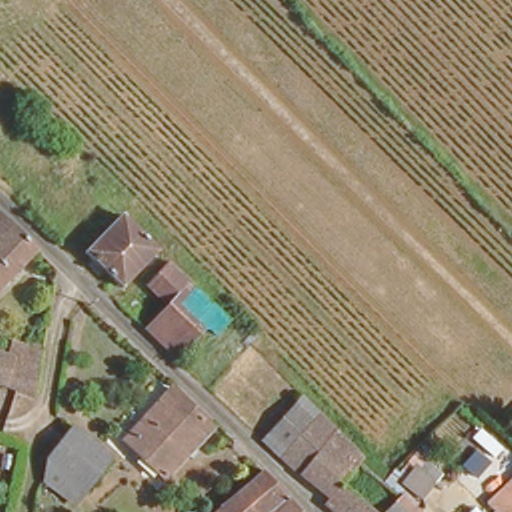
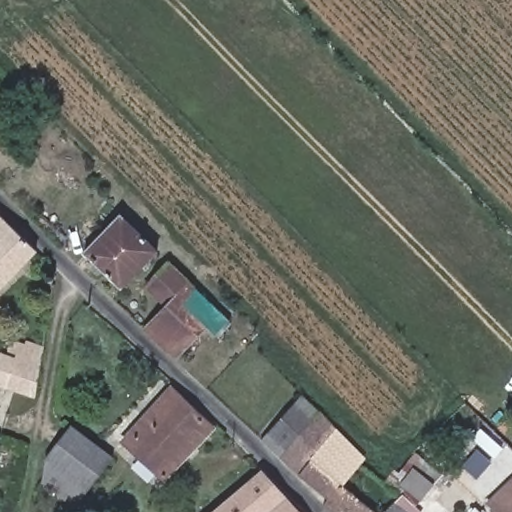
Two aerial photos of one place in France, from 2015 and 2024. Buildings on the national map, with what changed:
unchanged [(35,250),(0,285),(0,215),(35,250)]
unchanged [(158,251),(123,288),(85,252),(121,215),(158,251)]
unchanged [(227,314),(214,327),(205,320),(176,352),(146,323),(168,300),(146,279),(167,255),(227,314)]
unchanged [(8,349),(10,338),(39,343),(35,389),(0,381),(0,347),(8,349)]
unchanged [(212,428),(164,479),(123,440),(171,390),(212,428)]
unchanged [(364,455),(344,483),(380,512),(340,512),(325,499),(331,494),(264,435),(305,390),(364,455)]
unchanged [(45,476),(48,455),(76,423),(113,456),(86,487),(79,482),(67,496),(45,476)]
unchanged [(385,478),(401,458),(429,483),(415,500),(424,506),(418,512),(382,512),(398,490),(385,478)]
unchanged [(512,468),(512,512),(499,512),(485,496),(512,468)]
unchanged [(215,512),(266,469),(304,512),(215,512)]

